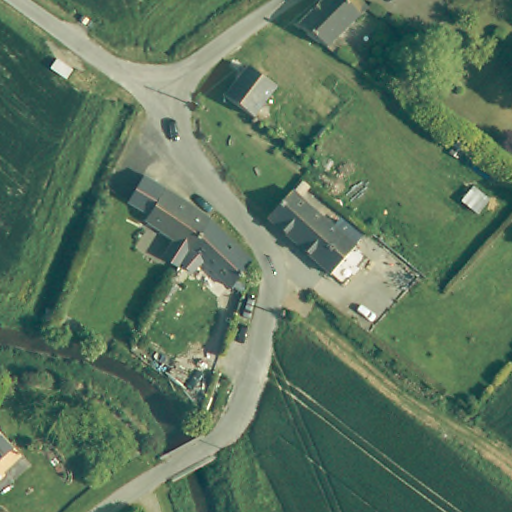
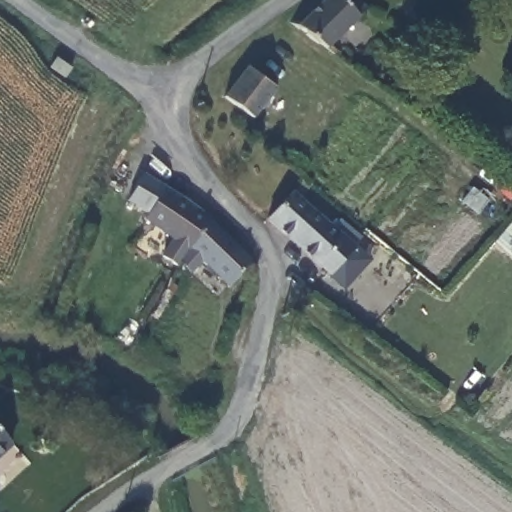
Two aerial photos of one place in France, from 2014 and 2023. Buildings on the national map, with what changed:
unchanged [(325,0),(341,0),(342,1),(343,0),(358,0),(369,10),(328,50),(297,29),(325,0)]
unchanged [(224,98),(250,67),(279,89),(254,120),(224,98)]
unchanged [(175,244),(180,234),(149,214),(170,182),(214,214),(190,254),(175,244)]
unchanged [(329,274),(268,219),(294,193),(334,229),(340,221),(362,240),(356,249),(329,274)]
unchanged [(208,255),(197,266),(187,258),(190,254),(214,214),(258,255),(235,284),(208,255)]
unchanged [(125,317),(139,325),(134,343),(117,334),(125,317)]
unchanged [(0,457),(0,432),(13,446),(0,457)]

